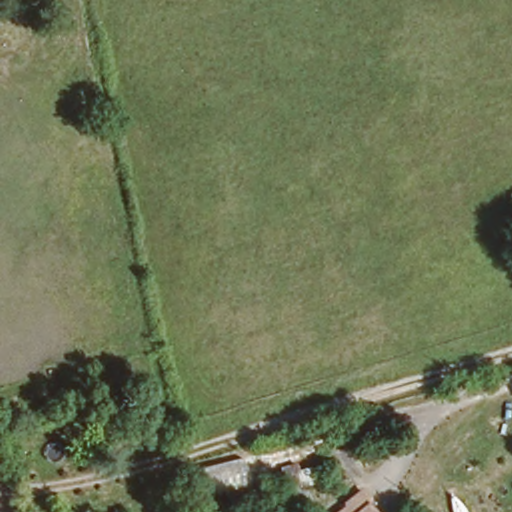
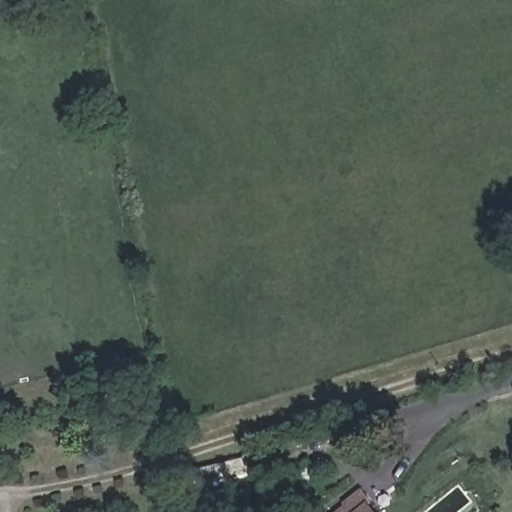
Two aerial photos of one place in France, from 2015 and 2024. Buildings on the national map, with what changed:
unchanged [(303,512),(291,512),(286,490),(303,484),(310,510),(303,512)]
unchanged [(364,504),(371,512),(355,512),(364,504)]

